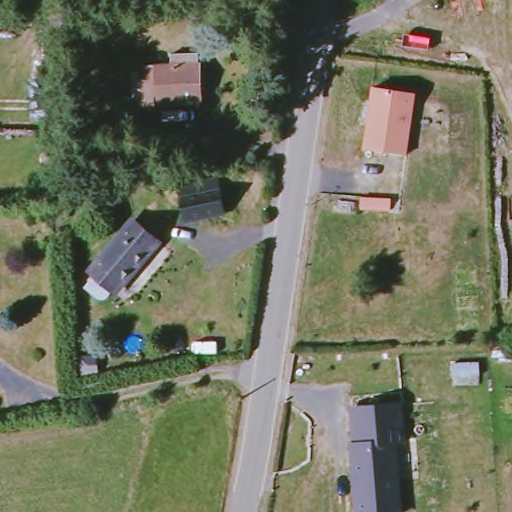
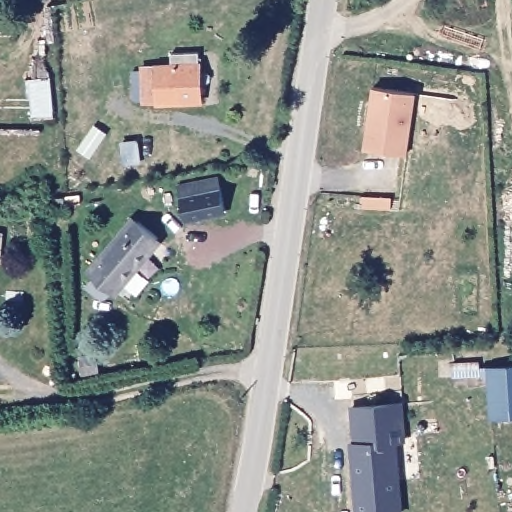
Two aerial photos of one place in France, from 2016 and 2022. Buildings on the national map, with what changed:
unchanged [(195,107),(144,109),(144,105),(135,105),(133,77),(143,76),(143,72),(172,72),(172,59),(199,57),(199,71),(200,107),(195,107)]
unchanged [(371,86),(415,91),(407,152),(364,146),(371,86)]
unchanged [(135,141),(136,162),(122,162),(121,141),(135,141)]
unchanged [(187,221),(182,195),(218,187),(223,214),(187,221)]
unchanged [(120,287),(116,284),(107,295),(92,282),(102,272),(95,267),(138,216),(163,236),(120,287)]
new [(512,372),(512,422),(487,423),(485,373),(512,372)]
unchanged [(355,443),(352,408),(400,403),(403,441),(395,442),(400,512),(357,512),(352,444),(355,443)]

